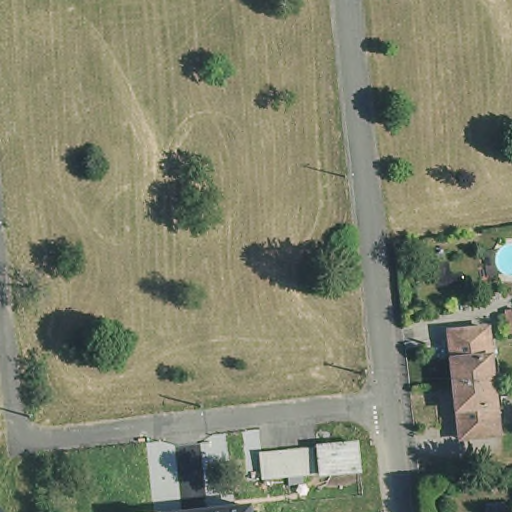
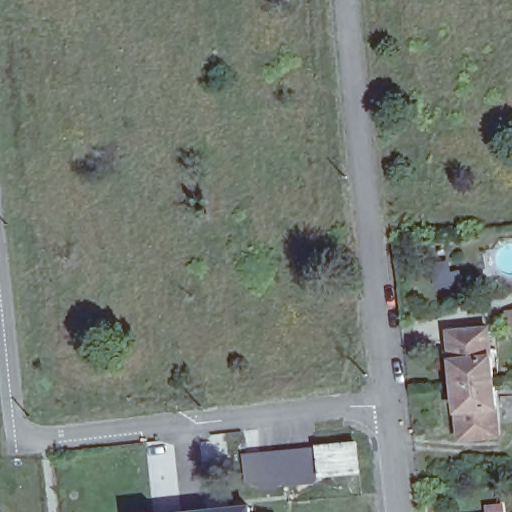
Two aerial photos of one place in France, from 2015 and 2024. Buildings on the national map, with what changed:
unchanged [(512,334),(510,334),(507,314),(512,314),(512,334)]
unchanged [(456,431),(446,338),(445,330),(484,327),(485,334),(495,433),(475,436),(457,438),(456,431)]
unchanged [(316,447),(362,442),(365,475),(320,480),(262,483),(261,452),(316,447)]
unchanged [(244,504),(244,512),(175,512),(244,504)]

